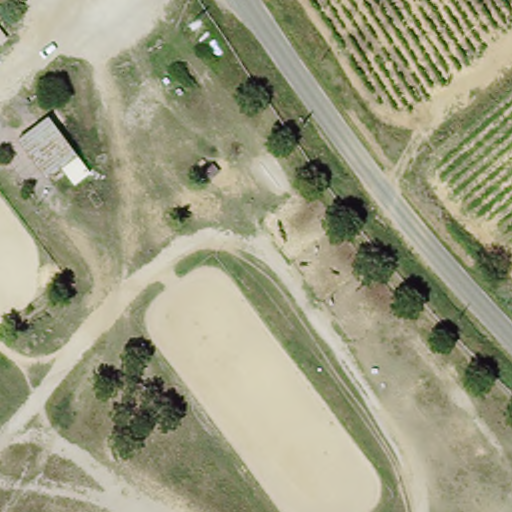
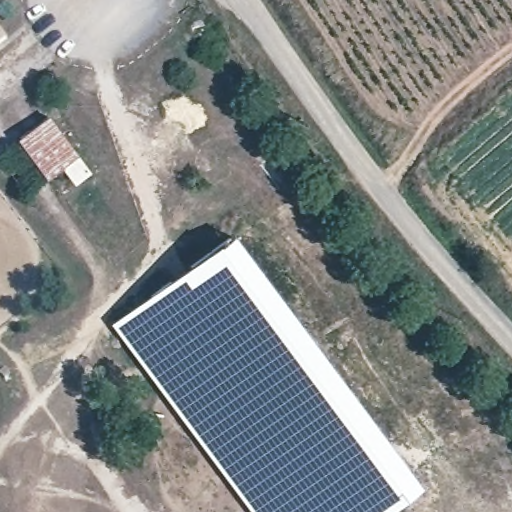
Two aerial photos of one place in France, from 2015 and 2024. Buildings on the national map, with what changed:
unchanged [(51,120),(81,159),(49,184),(17,145),(51,120)]
new [(112,325),(233,235),(420,488),(387,512),(252,512),(112,325)]

